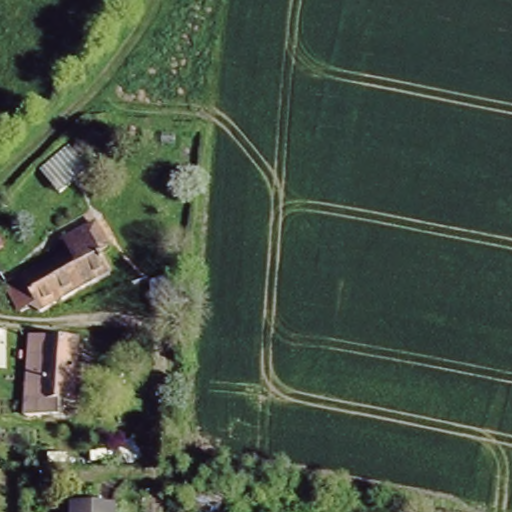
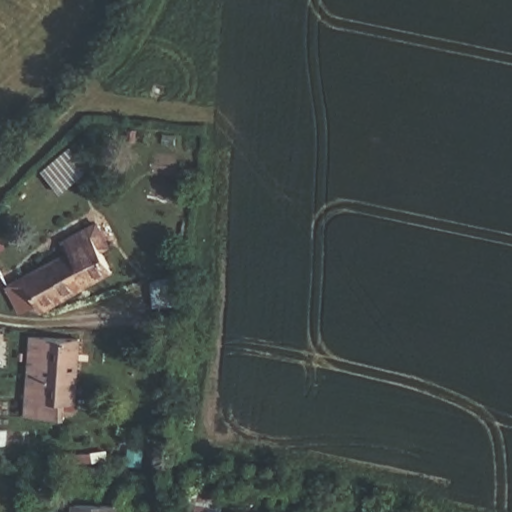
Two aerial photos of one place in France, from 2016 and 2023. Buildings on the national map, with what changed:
unchanged [(41,292),(30,297),(20,278),(67,252),(74,248),(69,239),(92,225),(119,268),(52,301),(46,301),(41,292)]
unchanged [(83,336),(80,405),(66,405),(66,421),(20,419),(27,335),(83,336)]
unchanged [(122,503),(122,512),(69,512),(69,500),(122,503)]

